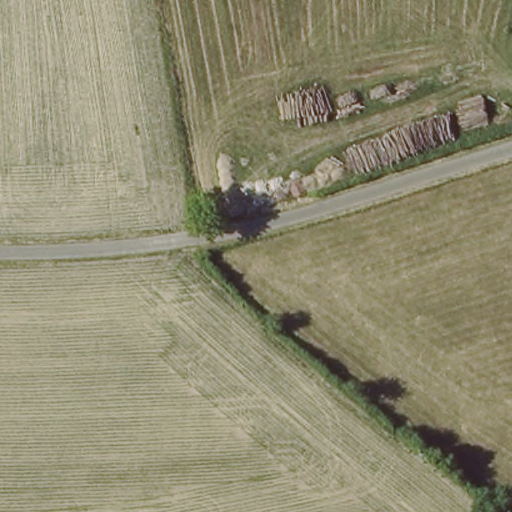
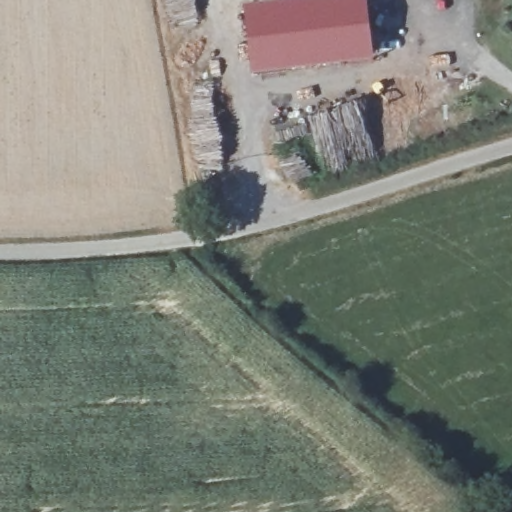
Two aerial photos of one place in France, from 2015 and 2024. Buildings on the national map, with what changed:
new [(368,0),(377,60),(252,74),(245,4),(283,0),(368,0)]

